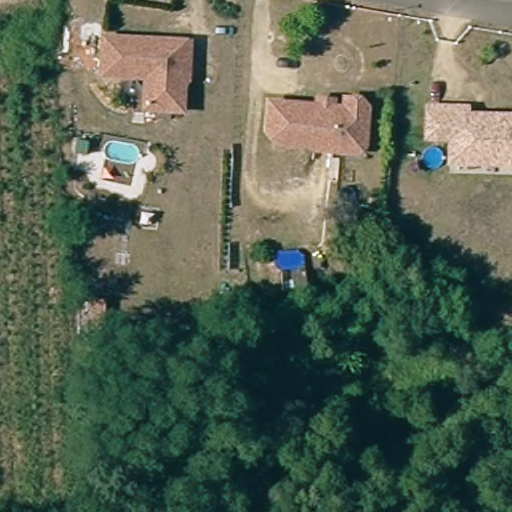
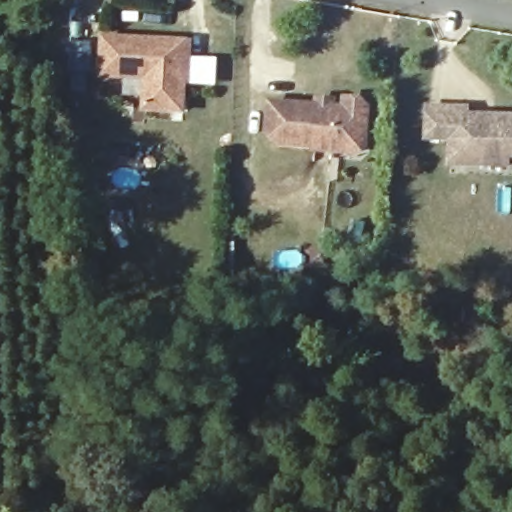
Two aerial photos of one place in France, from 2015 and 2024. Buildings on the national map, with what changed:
unchanged [(113,73),(116,34),(199,41),(193,111),(155,108),(155,96),(157,76),(113,73)]
unchanged [(368,145),(343,144),(325,143),(322,140),(285,138),(278,126),(280,96),(355,100),(355,91),(371,91),(377,98),(376,125),(375,138),(368,145)]
unchanged [(455,135),(440,135),(440,103),(455,104),(480,104),(480,112),(512,113),(512,162),(477,161),(462,160),(463,136),(455,135)]

